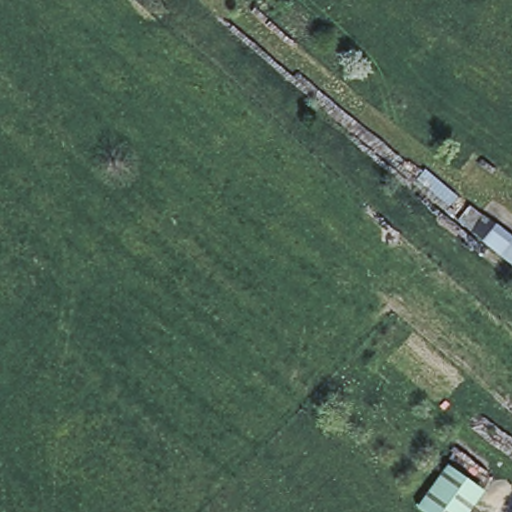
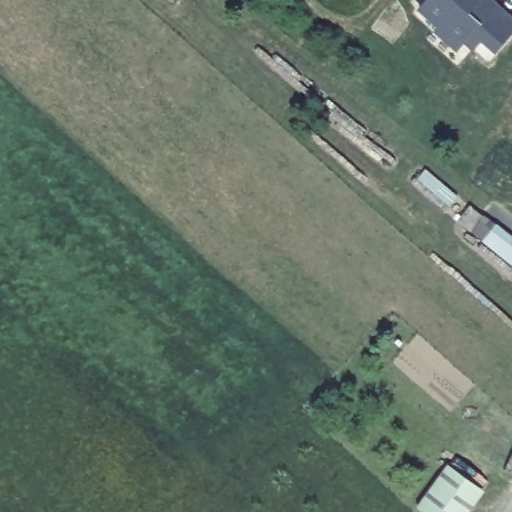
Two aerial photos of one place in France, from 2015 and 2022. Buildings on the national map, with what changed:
new [(512,14),(512,34),(496,53),(480,41),(473,52),(463,44),(456,53),(432,32),(437,28),(417,10),(425,0),(496,0),(512,14)]
unchanged [(512,238),(512,265),(470,231),(456,222),(468,204),(482,215),(512,238)]
unchanged [(467,512),(424,512),(417,507),(447,464),(485,490),(467,512)]

